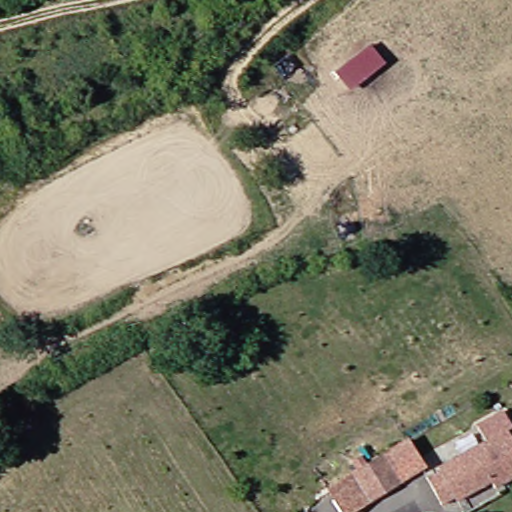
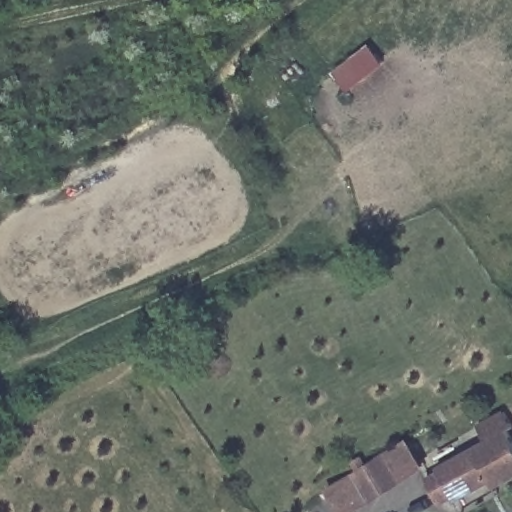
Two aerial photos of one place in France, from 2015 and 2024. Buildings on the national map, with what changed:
unchanged [(440,469),(488,441),(479,427),(505,412),(512,424),(512,430),(508,432),(512,439),(512,480),(498,490),(492,482),(458,502),(456,498),(442,506),(429,479),(441,472),(440,469)]
unchanged [(329,491),(409,440),(425,467),(358,512),(340,512),(329,491)]

